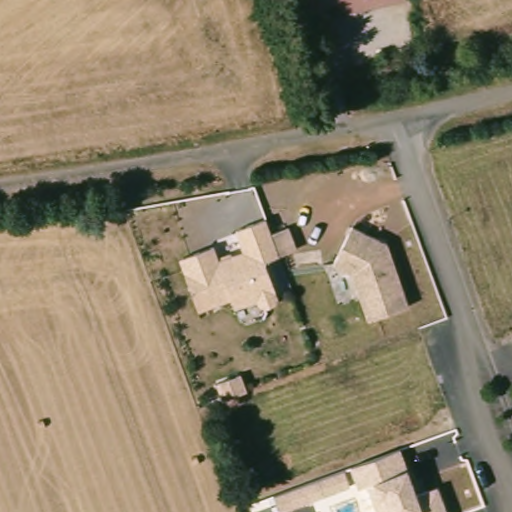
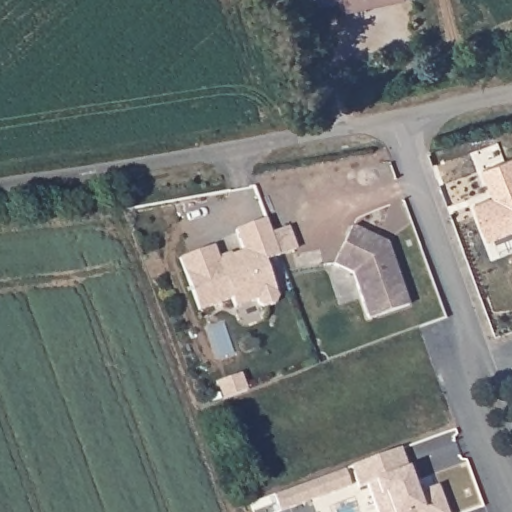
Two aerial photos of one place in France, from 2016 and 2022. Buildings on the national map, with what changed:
unchanged [(388,0),(355,6),(354,0),(388,0)]
new [(475,205),(493,198),(483,169),(512,158),(512,232),(489,241),(475,205)]
unchanged [(213,245),(218,259),(243,250),(236,229),(266,219),(279,255),(263,260),(276,297),(273,304),(263,307),(257,304),(256,299),(233,307),(230,297),(197,309),(179,257),(213,245)]
unchanged [(355,272),(336,263),(352,224),(389,236),(411,304),(368,318),(355,272)]
unchanged [(394,450),(397,449),(414,494),(435,486),(445,512),(375,512),(365,484),(357,488),(349,467),(394,450)]
unchanged [(342,469),(348,486),(278,512),(272,496),(342,469)]

